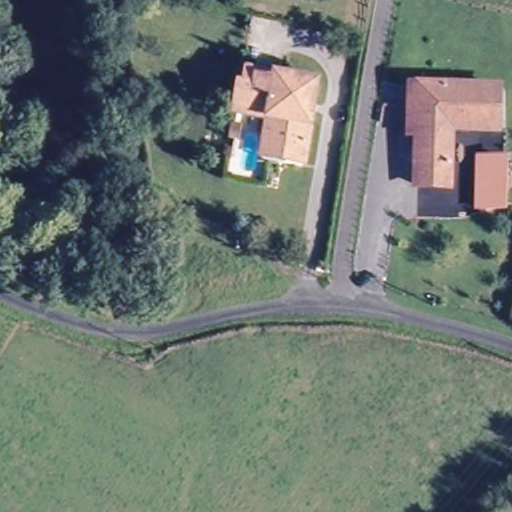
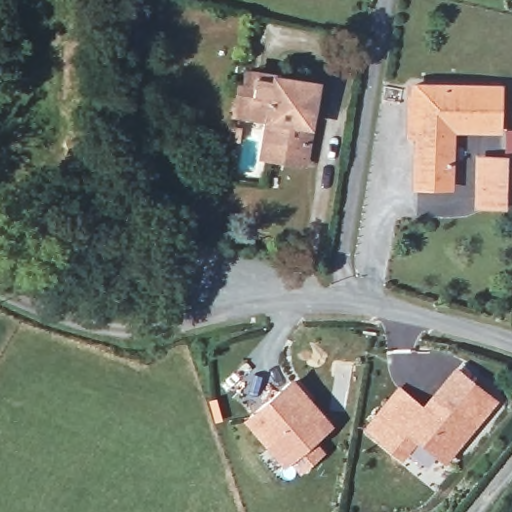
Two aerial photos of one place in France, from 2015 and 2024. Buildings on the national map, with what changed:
unchanged [(260,138),(263,120),(230,114),(234,89),(247,91),(252,71),(313,81),(301,159),(279,155),(257,151),(260,138)]
unchanged [(449,192),(416,192),(418,129),(406,128),(408,83),(495,84),(493,134),(451,131),(449,192)]
unchanged [(472,211),(474,162),(500,163),(499,211),(472,211)]
new [(422,407),(454,367),(496,402),(445,467),(417,444),(401,462),(362,429),(399,385),(422,407)]
new [(333,427),(284,470),(242,420),(293,379),(333,427)]

